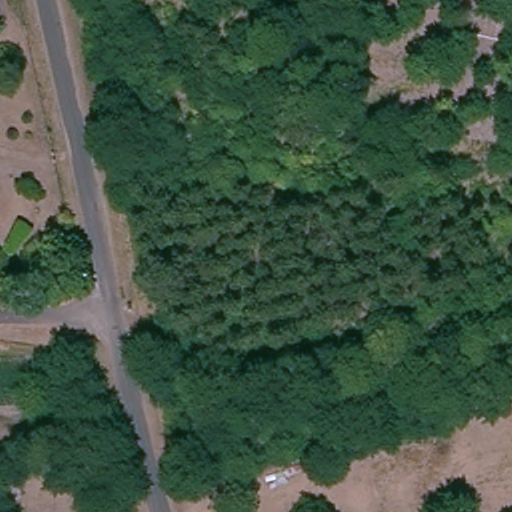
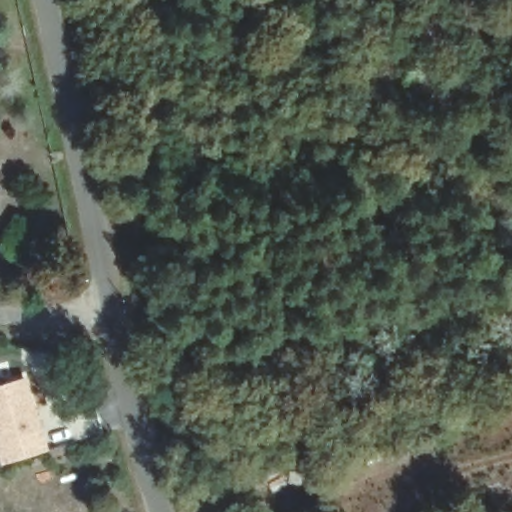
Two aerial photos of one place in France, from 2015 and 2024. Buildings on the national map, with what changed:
new [(0,386),(26,377),(49,450),(1,463),(0,460),(0,386)]

